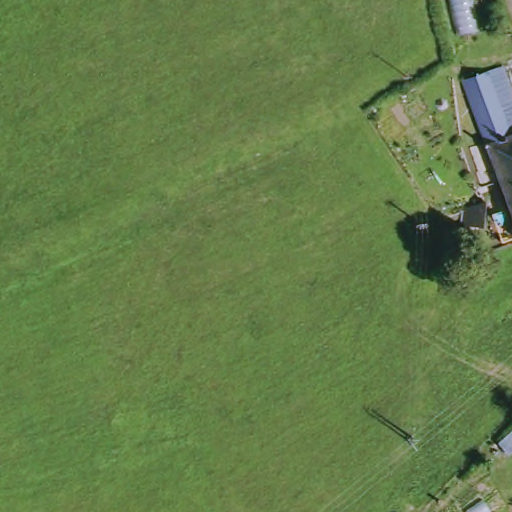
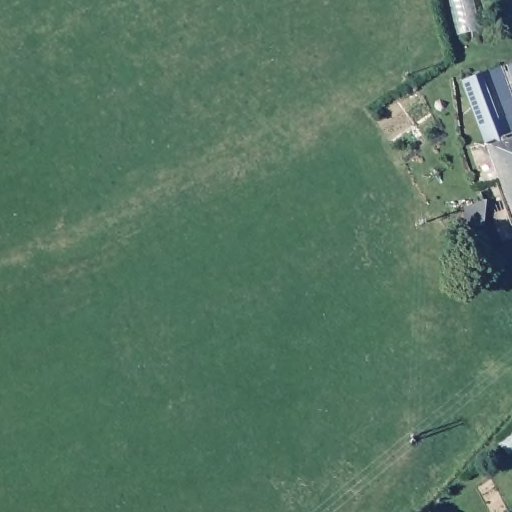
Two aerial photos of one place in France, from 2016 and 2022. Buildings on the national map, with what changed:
unchanged [(495,207),(491,194),(502,191),(496,174),(480,180),(472,164),(480,159),(468,125),(478,122),(462,77),(502,64),(512,91),(512,218),(507,204),(495,207)]
unchanged [(464,196),(486,200),(485,222),(464,219),(443,230),(434,213),(464,196)]

